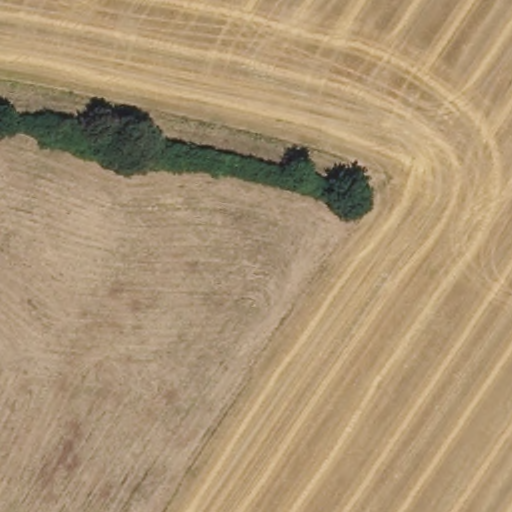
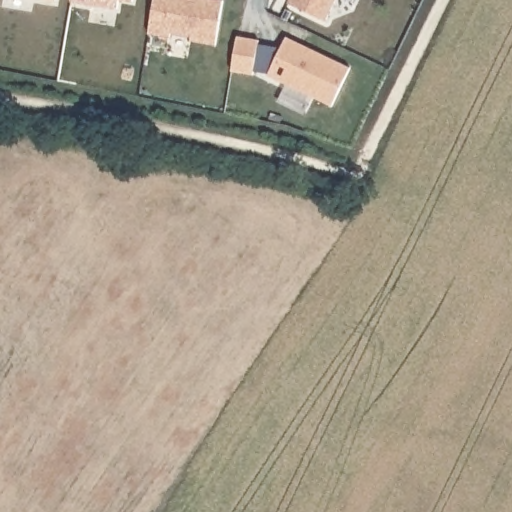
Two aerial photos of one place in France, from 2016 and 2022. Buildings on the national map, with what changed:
new [(116,10),(72,3),(73,0),(118,0),(116,10)]
new [(135,3),(120,0),(135,0),(135,3)]
new [(224,1),(216,45),(192,41),(193,36),(171,33),(170,38),(149,34),(154,0),(214,0),(224,1)]
new [(325,21),(288,4),(290,0),(336,0),(325,21)]
new [(261,40),(260,44),(281,48),(286,37),(351,69),(332,107),(267,75),(268,73),(255,71),(255,76),(233,72),(239,37),(261,40)]

